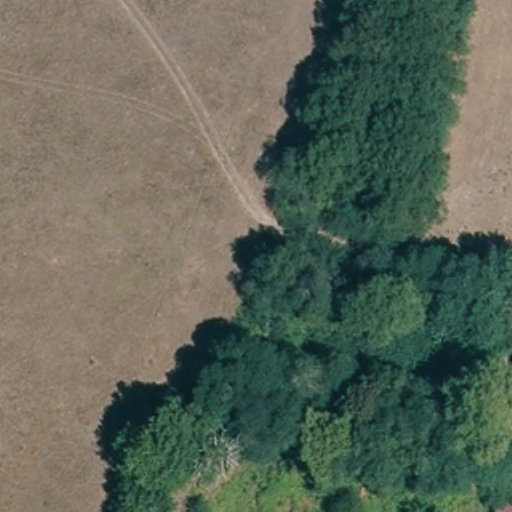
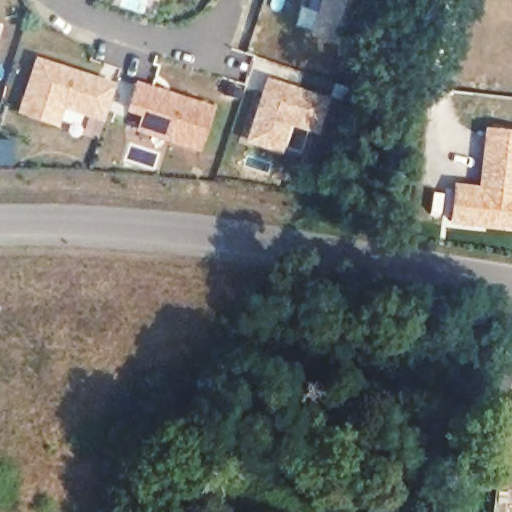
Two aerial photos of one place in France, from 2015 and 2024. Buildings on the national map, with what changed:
new [(310,36),(322,0),(370,0),(354,49),(310,36)]
new [(116,84),(104,124),(65,110),(59,128),(17,114),(36,58),(116,84)]
new [(330,98),(319,135),(291,127),(282,155),(245,144),(267,78),(330,98)]
new [(215,106),(201,153),(136,132),(141,118),(127,114),(138,81),(215,106)]
new [(476,184),(484,126),(512,130),(512,231),(448,223),(453,182),(476,184)]
unchanged [(340,403),(336,448),(307,444),(310,401),(340,403)]
unchanged [(494,457),(512,458),(512,512),(488,512),(494,457)]

